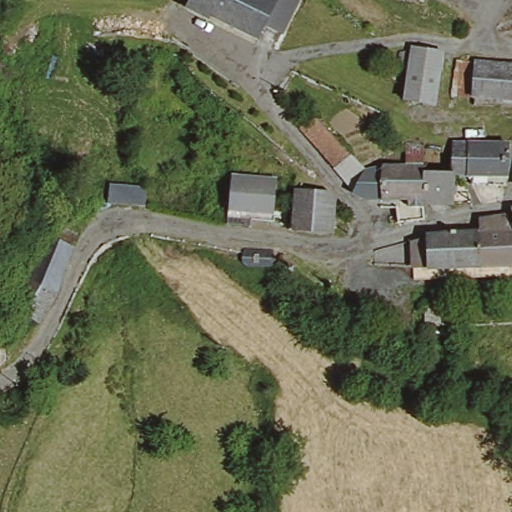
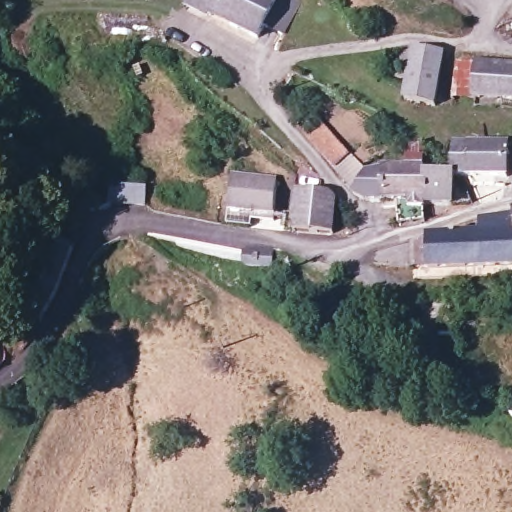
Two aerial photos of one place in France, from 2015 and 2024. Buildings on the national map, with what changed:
unchanged [(264,36),(196,8),(199,0),(279,0),(264,36)]
unchanged [(437,101),(407,97),(409,73),(413,50),(414,45),(443,50),(437,101)]
unchanged [(506,99),(493,98),(493,89),(475,89),(454,87),(458,53),(478,55),(512,58),(512,99),(509,99),(506,99)]
unchanged [(53,70),(45,66),(49,56),(56,60),(53,70)]
unchanged [(398,229),(398,212),(402,212),(409,212),(409,204),(402,204),(399,204),(396,204),(393,204),(390,204),(387,204),(384,205),(364,205),(355,200),(357,198),(301,131),(318,118),(366,169),(369,174),(383,170),(396,167),(406,165),(409,145),(425,145),(424,152),(424,175),(457,175),(457,170),(457,151),(458,145),(471,145),(484,144),(508,144),(508,178),(472,178),(456,178),(456,186),(456,196),(461,196),(463,196),(472,196),(473,202),(473,205),(457,206),(455,206),(426,208),(426,210),(426,223),(426,225),(398,229)]
unchanged [(88,156),(85,156),(85,161),(74,161),(74,156),(64,157),(64,137),(88,135),(88,156)]
unchanged [(143,206),(110,202),(113,180),(146,184),(147,186),(143,206)]
unchanged [(272,220),(227,215),(230,184),(274,187),(272,220)]
unchanged [(336,206),(334,232),(294,229),(297,190),(329,194),(336,199),(336,206)]
unchanged [(477,271),(473,271),(471,272),(468,272),(426,273),(424,239),(477,236),(476,222),(511,215),(511,212),(512,212),(512,270),(479,271),(477,271)]
unchanged [(61,276),(53,297),(38,327),(21,318),(16,315),(0,305),(0,287),(29,229),(44,236),(51,225),(66,231),(65,235),(63,237),(62,240),(59,247),(68,252),(68,255),(61,276)]
unchanged [(269,270),(263,271),(256,271),(250,271),(248,271),(244,269),(241,266),(239,263),(238,260),(240,256),(245,253),(252,252),(270,254),(269,270)]
unchanged [(474,328),(423,330),(423,308),(473,307),(474,328)]
unchanged [(411,330),(410,342),(379,340),(380,324),(381,315),(412,317),(411,330)]

